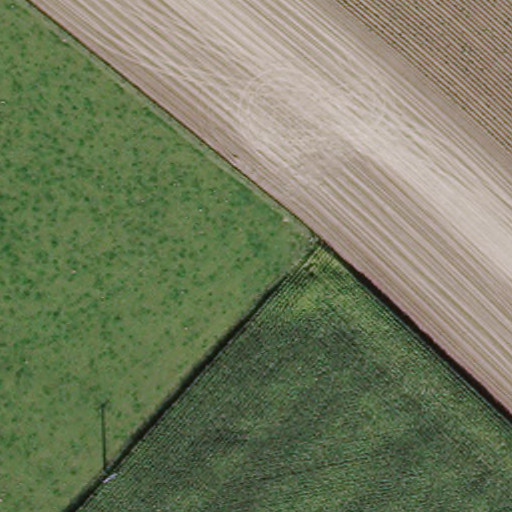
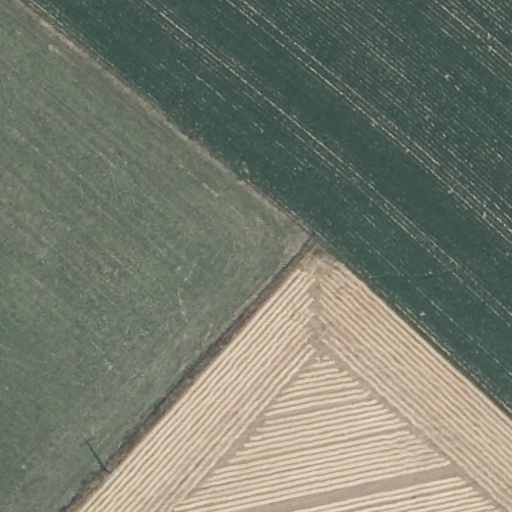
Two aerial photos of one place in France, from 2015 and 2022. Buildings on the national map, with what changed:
[]

